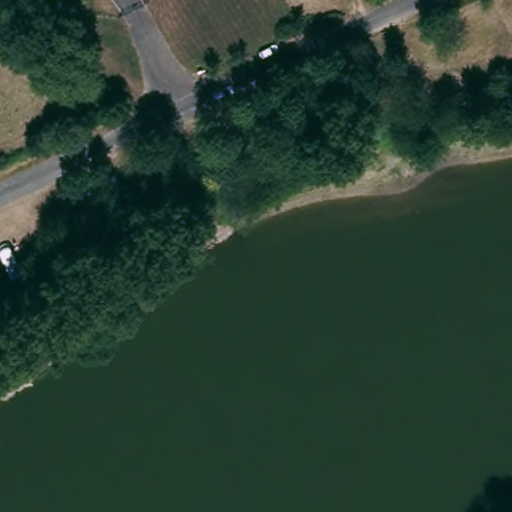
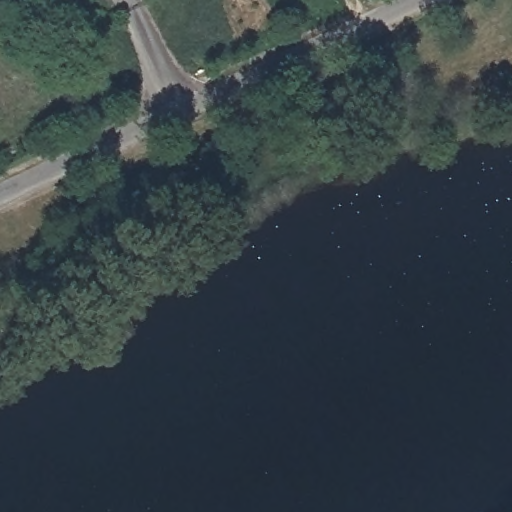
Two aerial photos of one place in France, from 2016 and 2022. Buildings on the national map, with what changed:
[]

